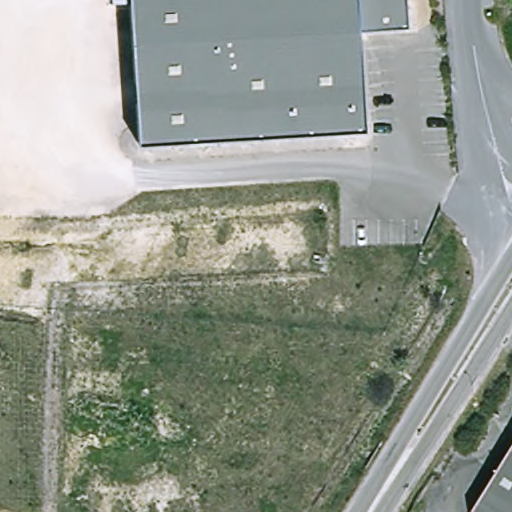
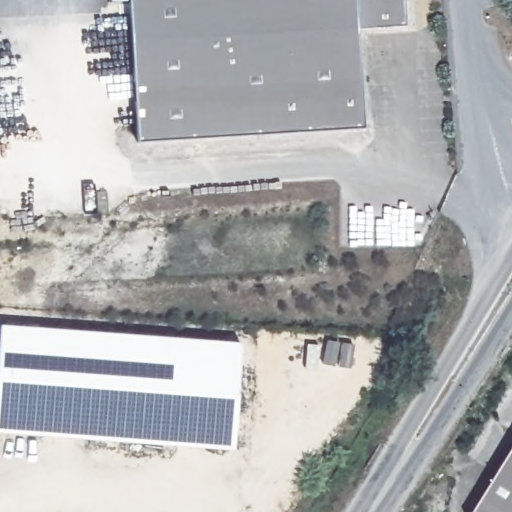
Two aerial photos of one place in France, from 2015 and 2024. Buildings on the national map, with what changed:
unchanged [(405,0),(407,30),(359,33),(366,136),(141,148),(132,0),(405,0)]
new [(234,451),(0,434),(0,327),(242,343),(234,451)]
unchanged [(512,448),(512,512),(473,512),(486,491),(512,448)]

